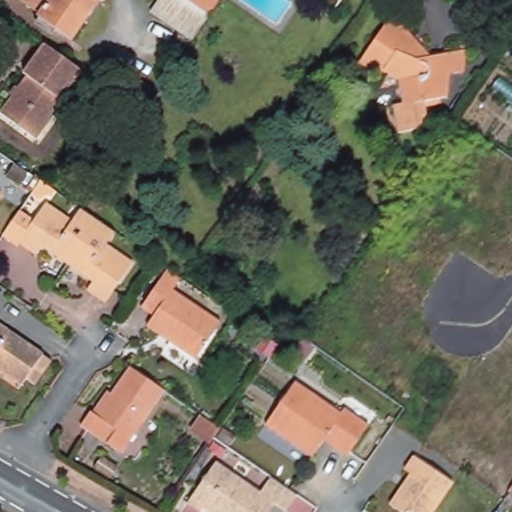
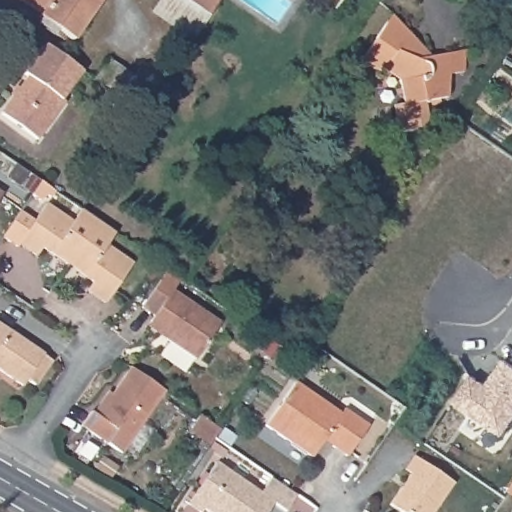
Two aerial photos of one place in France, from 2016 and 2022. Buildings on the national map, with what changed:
unchanged [(68,40),(35,16),(36,13),(18,0),(95,0),(68,40)]
unchanged [(204,32),(187,36),(154,16),(163,0),(221,0),(204,32)]
unchanged [(333,5),(325,0),(336,0),(333,5)]
unchanged [(425,127),(421,127),(421,132),(396,137),(392,110),(400,107),(396,85),(385,78),(370,73),(355,68),(359,62),(385,24),(389,18),(415,45),(415,51),(421,54),(429,61),(464,54),(462,77),(448,79),(445,102),(440,102),(440,110),(423,112),(425,127)]
unchanged [(60,100),(32,139),(0,116),(0,107),(22,74),(19,72),(39,43),(76,70),(57,97),(60,100)]
unchanged [(89,82),(92,77),(105,60),(127,74),(115,92),(110,97),(89,82)]
unchanged [(18,186),(5,177),(14,165),(26,174),(18,186)]
unchanged [(54,192),(49,198),(46,197),(37,201),(30,195),(39,182),(54,192)]
unchanged [(79,210),(95,221),(105,228),(111,232),(102,245),(128,262),(100,303),(82,291),(89,282),(64,265),(38,247),(31,256),(14,244),(12,247),(0,238),(9,226),(18,212),(30,221),(42,203),(69,222),(77,209),(79,210)]
unchanged [(145,322),(149,317),(135,307),(161,270),(175,278),(166,290),(230,333),(205,371),(162,341),(141,327),(145,322)]
unchanged [(0,289),(5,292),(0,299),(0,289)]
unchanged [(22,387),(0,371),(0,324),(44,355),(22,387)]
new [(451,405),(470,378),(488,391),(494,382),(490,380),(502,362),(512,369),(512,423),(501,439),(451,405)]
unchanged [(163,391),(119,455),(85,432),(77,426),(87,411),(94,415),(108,394),(112,397),(131,368),(137,372),(163,391)]
unchanged [(310,457),(264,426),(293,382),(338,413),(342,408),(366,425),(345,456),(332,446),(322,440),(310,457)]
unchanged [(214,428),(210,437),(209,438),(205,442),(184,427),(193,414),(214,428)]
unchanged [(208,443),(220,452),(215,460),(202,452),(208,443)]
unchanged [(402,512),(390,504),(411,474),(405,470),(414,456),(454,483),(434,512),(402,512)]
unchanged [(199,512),(198,511),(197,512),(191,512),(181,506),(210,465),(267,504),(262,512),(199,512)]

